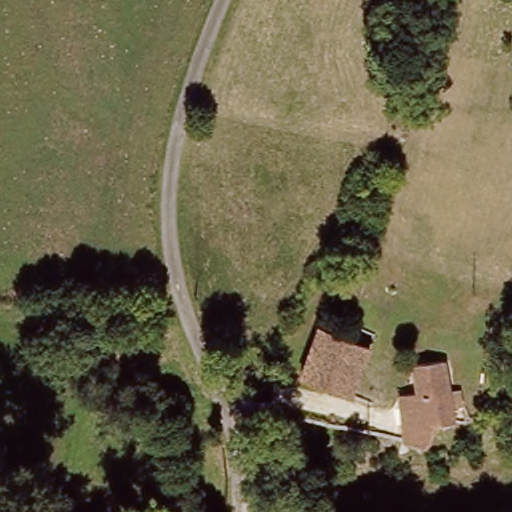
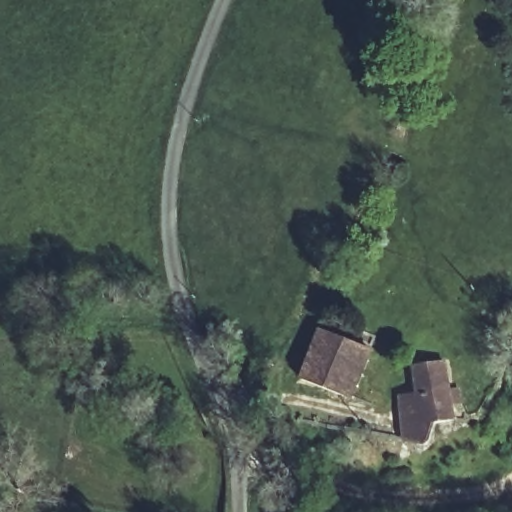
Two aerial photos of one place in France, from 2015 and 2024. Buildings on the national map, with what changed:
unchanged [(370,393),(314,379),(329,330),(386,344),(370,393)]
unchanged [(462,384),(472,387),(473,402),(465,404),(466,424),(421,434),(417,386),(431,384),(429,361),(460,358),(462,384)]

